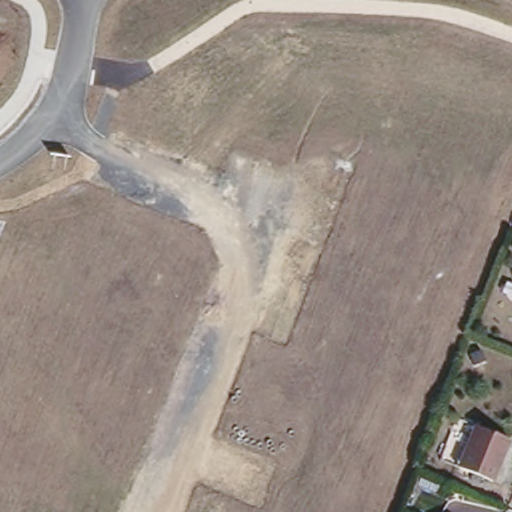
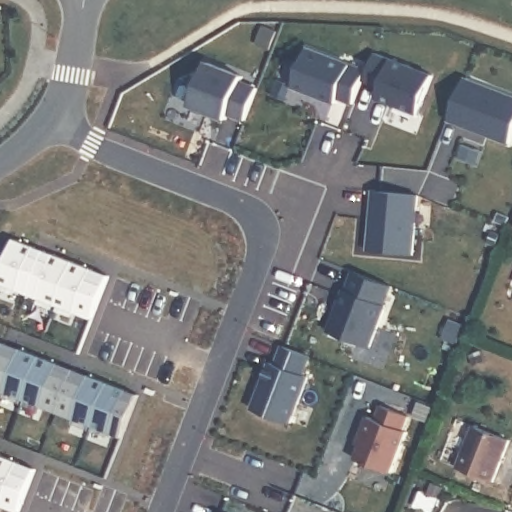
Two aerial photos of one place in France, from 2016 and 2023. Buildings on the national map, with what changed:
new [(308,48),(366,70),(353,103),(338,97),(336,102),(293,86),(308,48)]
new [(377,97),(381,87),(365,81),(375,53),(432,75),(418,113),(377,97)]
new [(226,120),(191,105),(209,62),(245,76),(244,81),(258,86),(245,120),(229,114),(226,120)]
new [(465,78),(512,96),(512,136),(510,142),(449,119),(465,78)]
new [(417,195),(411,255),(368,250),(374,190),(417,195)]
new [(110,275),(94,317),(0,280),(0,274),(14,237),(110,275)]
new [(353,272),(393,289),(370,347),(329,331),(353,272)]
new [(140,393),(121,440),(0,394),(0,341),(1,337),(140,393)]
new [(270,362),(276,365),(283,346),(310,356),(303,375),(308,377),(290,423),(252,408),(270,362)]
new [(391,472),(356,458),(365,435),(361,433),(368,416),(376,419),(381,405),(409,416),(403,430),(407,431),(391,472)]
unchanged [(457,464),(475,422),(510,437),(492,479),(457,464)]
new [(22,512),(17,512),(0,505),(0,457),(37,472),(22,512)]

